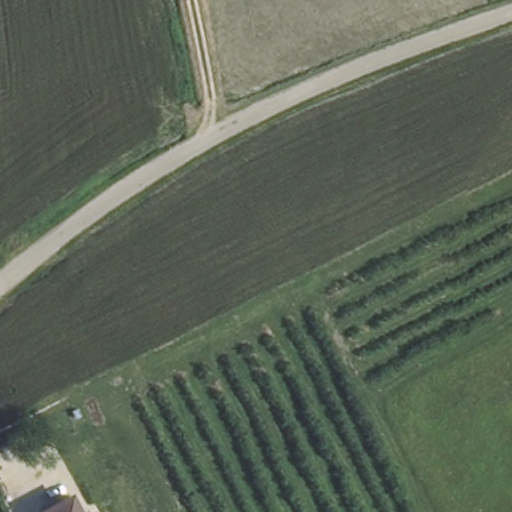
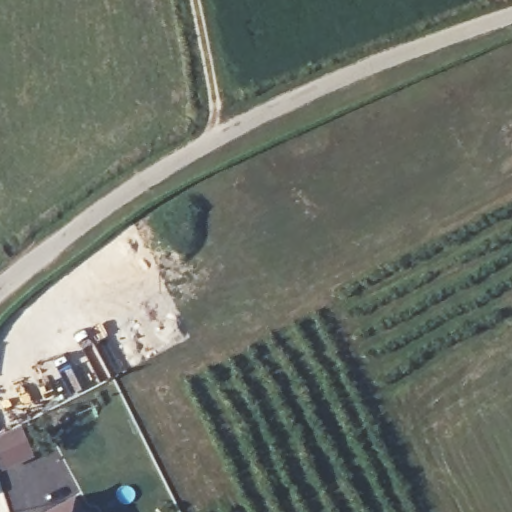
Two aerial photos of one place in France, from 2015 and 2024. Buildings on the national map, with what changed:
new [(20,425),(33,456),(0,469),(0,468),(0,434),(20,425)]
unchanged [(73,493),(82,512),(50,512),(46,506),(73,493)]

